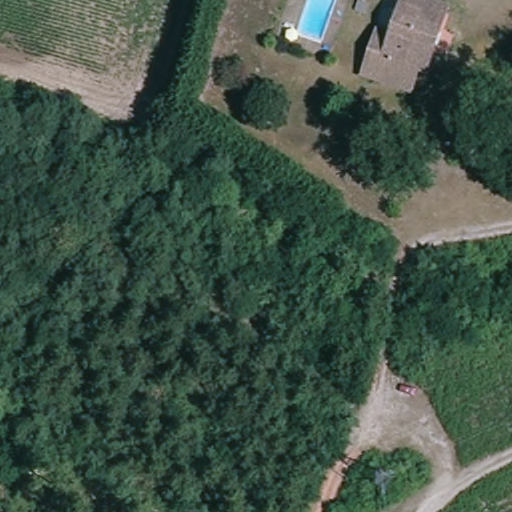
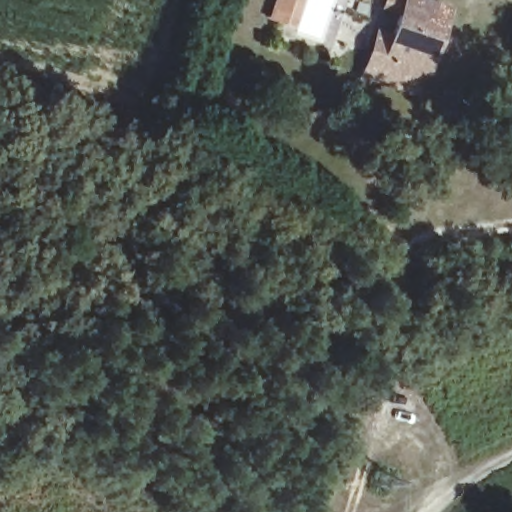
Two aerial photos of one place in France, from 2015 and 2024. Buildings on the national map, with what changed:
unchanged [(358,49),(376,55),(395,0),(428,0),(438,3),(418,66),(408,64),(401,89),(372,81),(350,76),(353,64),(358,49)]

